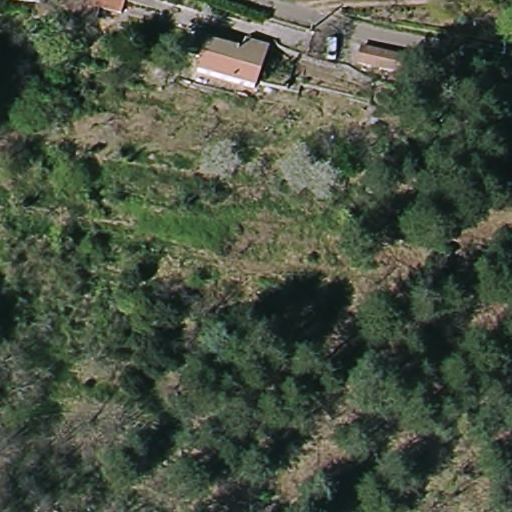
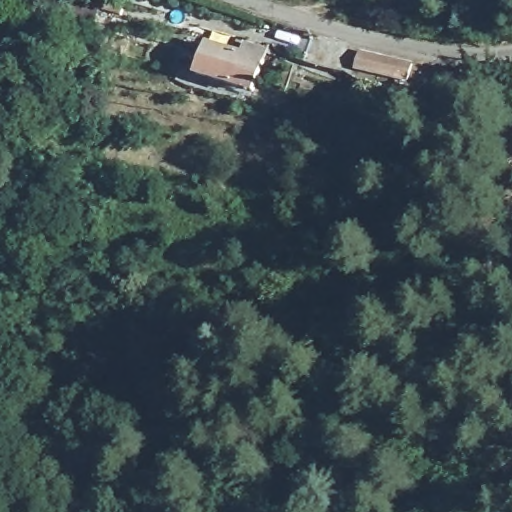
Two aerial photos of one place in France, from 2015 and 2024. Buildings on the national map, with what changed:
unchanged [(73,14),(54,10),(56,0),(118,0),(114,24),(73,14)]
unchanged [(193,77),(205,46),(237,57),(244,34),(272,42),(253,99),(193,77)]
unchanged [(397,87),(358,75),(364,57),(401,69),(397,87)]

